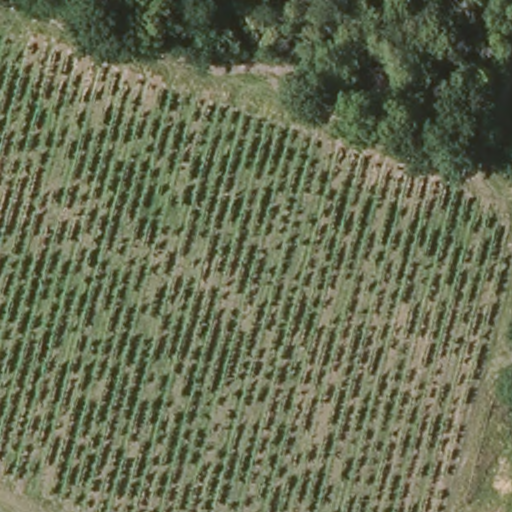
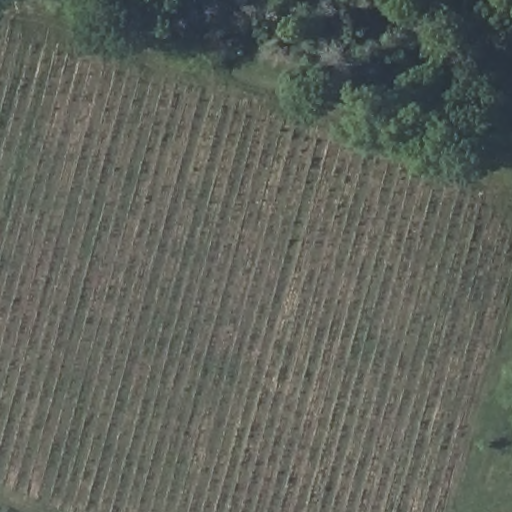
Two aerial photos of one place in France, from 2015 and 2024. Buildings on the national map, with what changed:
[]

